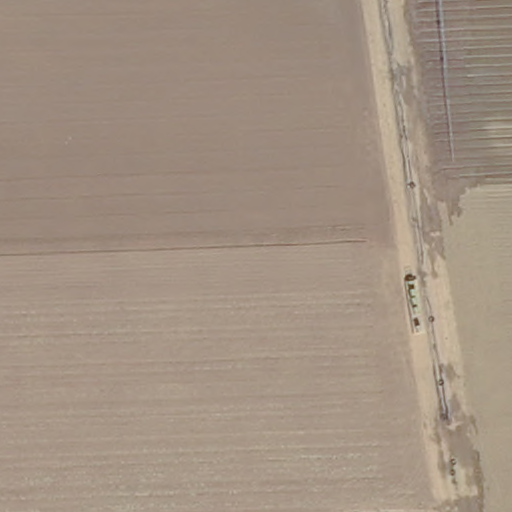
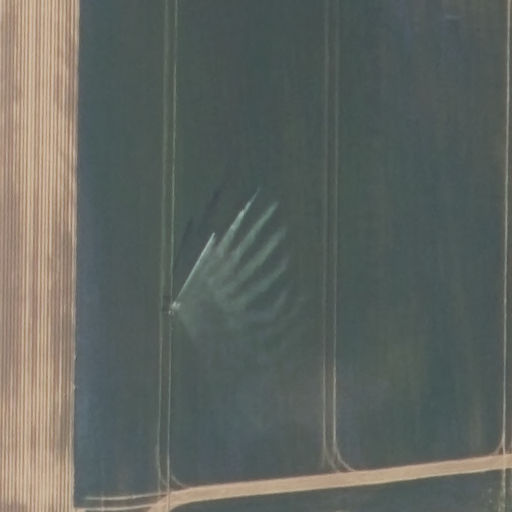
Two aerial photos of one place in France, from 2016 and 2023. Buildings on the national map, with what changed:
[]

